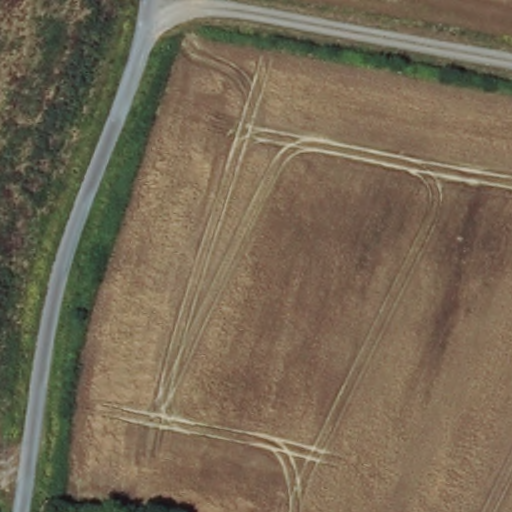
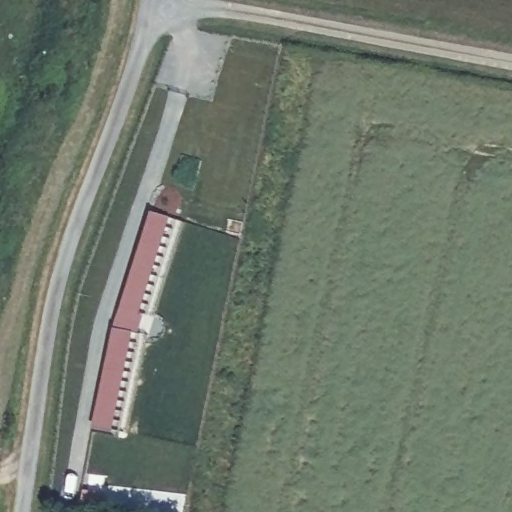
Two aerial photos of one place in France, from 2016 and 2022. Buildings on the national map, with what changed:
new [(116,327),(154,209),(171,215),(141,313),(144,314),(140,332),(135,330),(113,429),(95,424),(116,327)]

